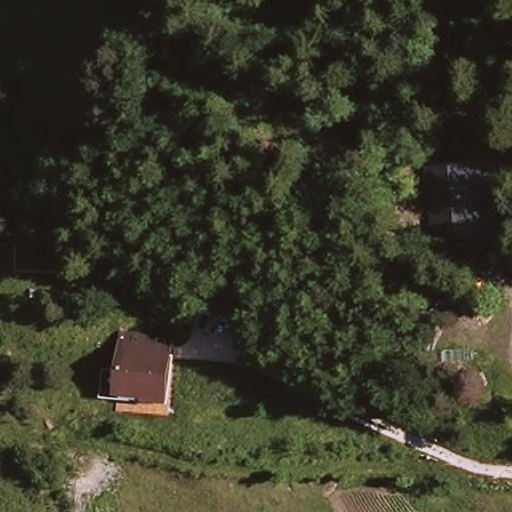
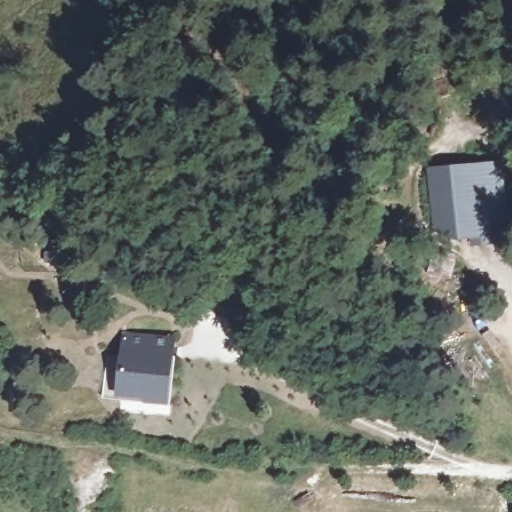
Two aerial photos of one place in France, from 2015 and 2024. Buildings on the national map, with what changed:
new [(492,162),(495,245),(472,246),(471,239),(436,241),(427,170),(492,162)]
unchanged [(177,408),(120,405),(118,332),(177,335),(177,408)]

